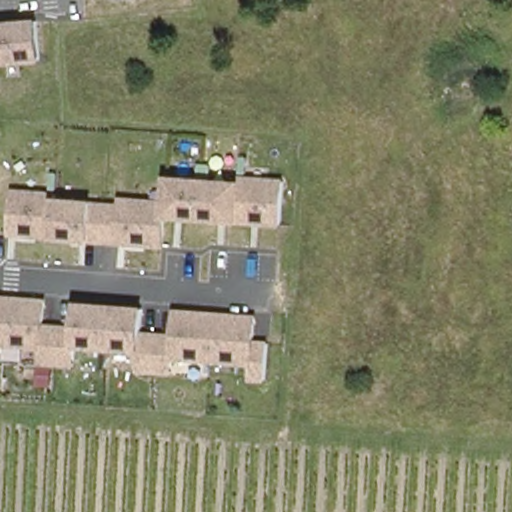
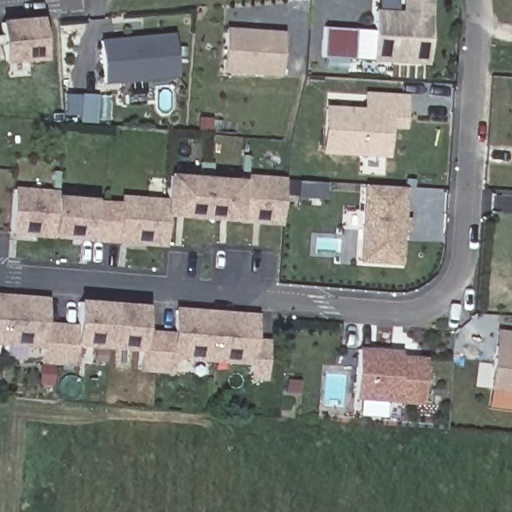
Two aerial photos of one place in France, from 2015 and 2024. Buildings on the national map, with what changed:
new [(402,0),(432,0),(430,65),(371,63),(375,10),(401,12),(402,0)]
unchanged [(40,17),(44,63),(0,66),(0,20),(40,17)]
new [(282,32),(279,78),(223,75),(226,28),(282,32)]
new [(104,86),(100,41),(172,34),(176,79),(142,82),(144,95),(129,97),(127,84),(104,86)]
new [(407,95),(406,131),(390,130),(388,158),(322,155),(325,106),(364,108),(365,92),(407,95)]
unchanged [(172,218),(167,247),(12,236),(16,188),(60,189),(60,197),(122,202),(122,196),(166,198),(168,174),(245,181),(242,175),(286,178),(281,226),(172,218)]
new [(358,264),(365,186),(406,189),(405,218),(411,218),(410,230),(401,266),(358,264)]
unchanged [(49,299),(47,323),(76,325),(79,301),(147,305),(145,330),(174,334),(176,309),(258,315),(257,340),(268,340),(267,381),(250,381),(252,366),(177,361),(174,374),(139,373),(142,353),(76,347),(75,366),(56,366),(54,385),(40,385),(42,351),(0,345),(0,295),(49,299)]
new [(497,330),(512,331),(512,393),(490,390),(495,346),(497,330)]
new [(358,348),(402,351),(402,357),(427,358),(423,405),(355,401),(358,348)]

